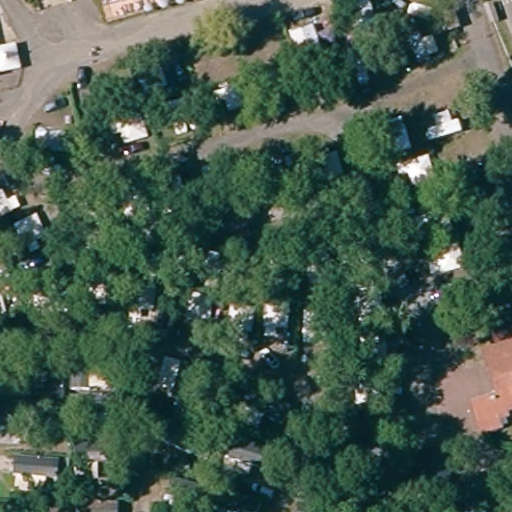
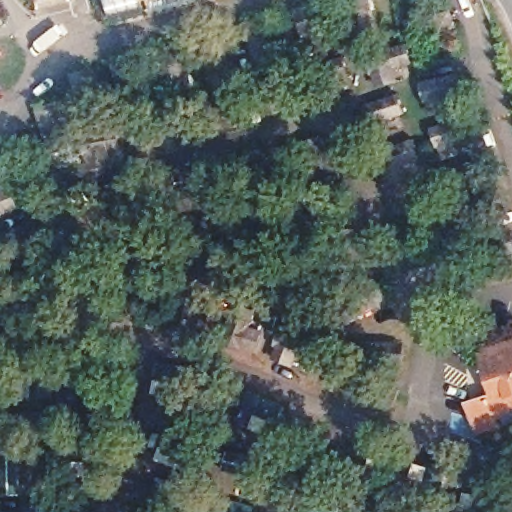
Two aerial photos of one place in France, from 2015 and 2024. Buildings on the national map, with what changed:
unchanged [(450,16),(462,11),(466,24),(455,28),(450,16)]
unchanged [(483,437),(469,410),(483,401),(490,396),(487,390),(481,373),(473,355),(512,337),(512,405),(499,412),(502,417),(493,422),(497,430),(483,437)]

